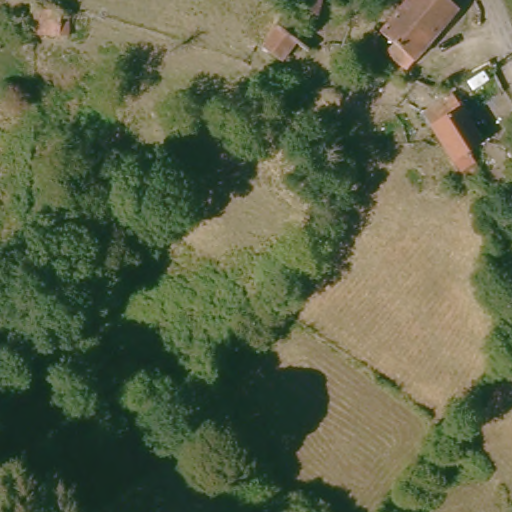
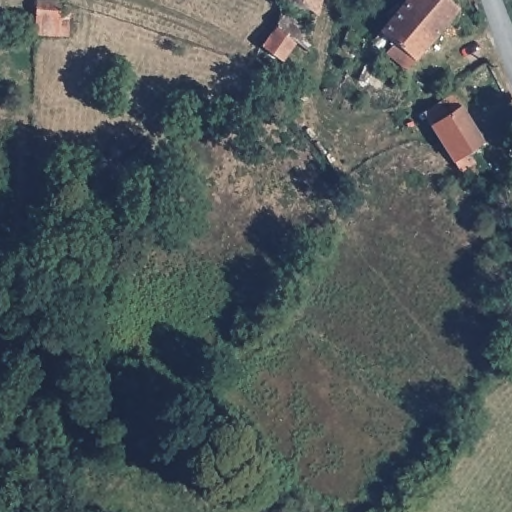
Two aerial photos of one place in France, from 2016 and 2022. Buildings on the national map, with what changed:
unchanged [(290,0),(316,0),(312,16),(290,0)]
unchanged [(397,29),(382,17),(396,0),(456,0),(410,58),(387,42),(397,29)]
unchanged [(32,5),(57,7),(56,12),(65,14),(64,29),(55,27),(53,45),(27,42),(32,5)]
unchanged [(265,51),(297,16),(320,39),(307,54),(303,51),(285,70),(265,51)]
unchanged [(362,67),(370,47),(394,57),(385,78),(362,67)]
unchanged [(472,162),(455,175),(413,117),(416,115),(445,94),(480,141),(466,151),(473,161),(472,162)]

